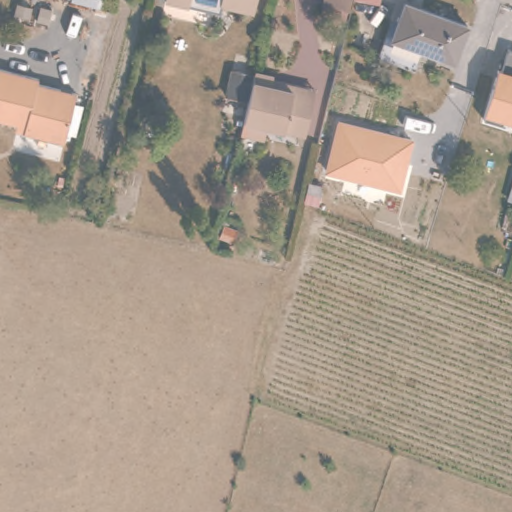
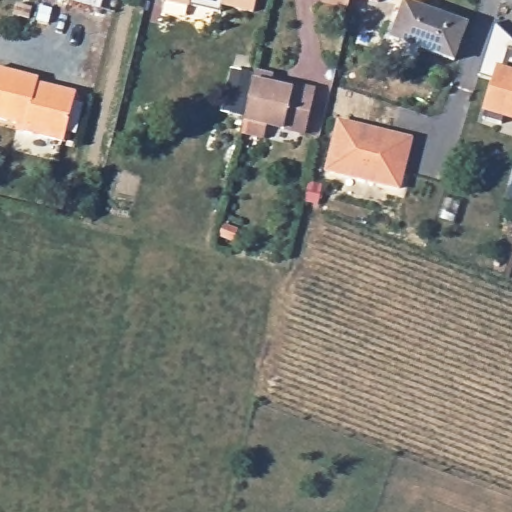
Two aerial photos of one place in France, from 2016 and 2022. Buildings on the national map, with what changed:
unchanged [(190,3),(189,7),(167,1),(167,0),(216,0),(215,9),(190,3)]
unchanged [(242,11),(223,6),(222,11),(215,9),(216,0),(257,0),(254,14),(242,11)]
unchanged [(325,0),(348,0),(346,10),(324,4),(325,0)]
unchanged [(371,0),(380,0),(380,2),(371,0)]
unchanged [(470,26),(457,64),(426,54),(418,75),(382,62),(390,42),(396,44),(409,6),(470,26)]
unchanged [(502,118),(502,123),(482,117),(507,49),(512,50),(512,121),(502,118)]
unchanged [(43,82),(82,92),(70,139),(29,129),(31,124),(0,116),(0,67),(45,77),(43,82)]
unchanged [(314,97),(306,136),(246,122),(257,72),(273,76),(271,87),(314,97)]
unchanged [(398,189),(324,171),(338,119),(413,138),(398,189)]

